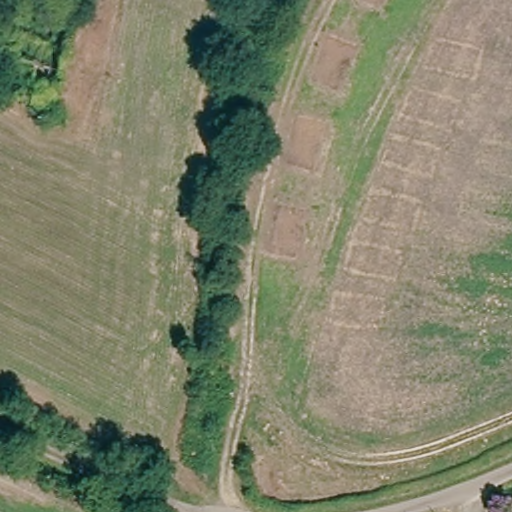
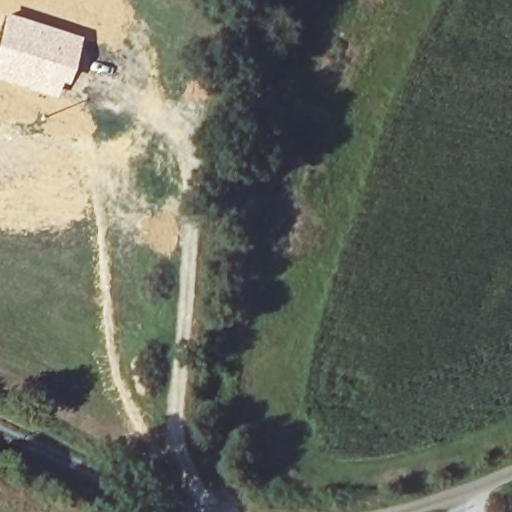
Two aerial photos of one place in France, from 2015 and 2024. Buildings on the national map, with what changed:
new [(2,11),(79,35),(63,84),(58,82),(52,96),(0,80),(0,19),(2,11)]

